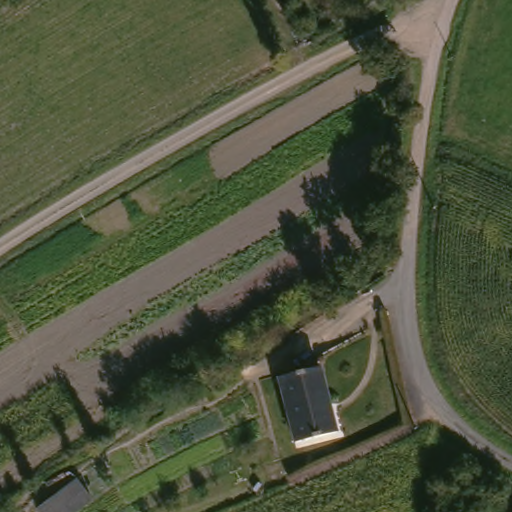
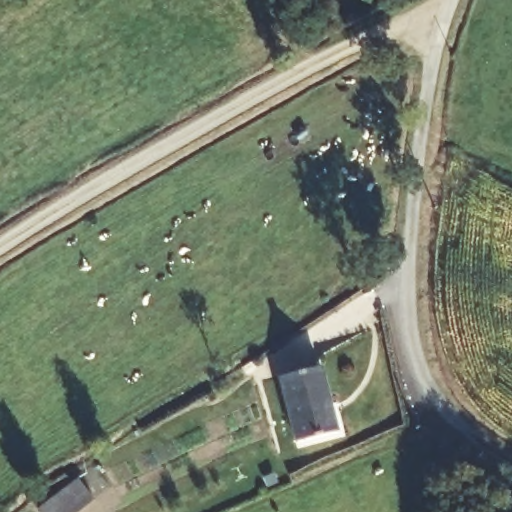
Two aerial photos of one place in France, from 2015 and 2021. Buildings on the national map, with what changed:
unchanged [(343,428),(302,440),(286,373),(326,363),(343,428)]
unchanged [(49,512),(43,504),(82,475),(99,497),(78,512),(49,512)]

